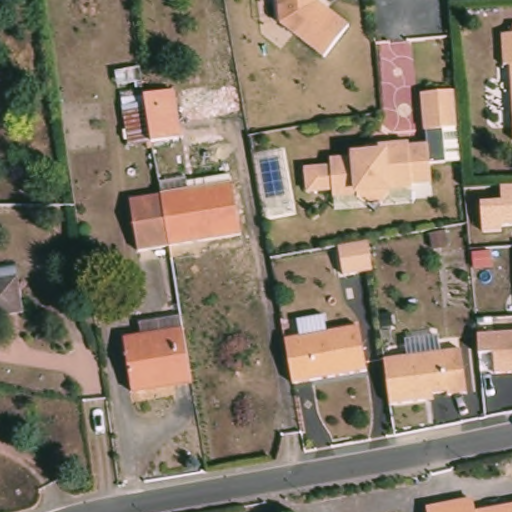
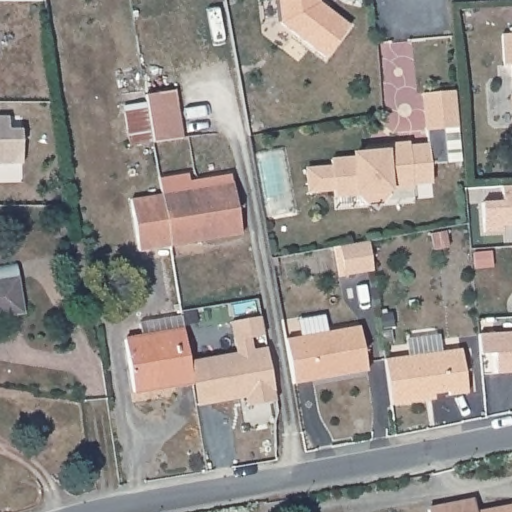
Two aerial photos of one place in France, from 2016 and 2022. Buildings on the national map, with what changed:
unchanged [(354,19),(332,53),(285,21),(283,0),(325,0),(354,19)]
unchanged [(507,33),(512,33),(512,64),(509,64),(507,33)]
unchanged [(335,183),(310,185),(308,162),(333,160),(333,154),(357,152),(356,149),(368,148),(368,141),(386,139),(411,137),(411,141),(429,139),(425,88),(458,85),(460,122),(462,137),(463,155),(448,157),(432,158),(433,177),(414,178),(414,182),(390,183),(391,189),(376,206),(370,200),(336,203),(335,190),(335,183)]
unchanged [(149,144),(126,147),(118,100),(141,97),(170,93),(173,107),(178,139),(149,144)]
new [(9,118),(9,131),(22,130),(23,165),(0,166),(0,118),(9,118)]
unchanged [(157,196),(155,183),(182,179),(184,191),(227,185),(235,234),(165,246),(157,196)]
unchanged [(502,233),(483,234),(481,202),(501,200),(500,187),(512,187),(512,226),(502,227),(502,233)]
unchanged [(132,250),(124,201),(157,196),(165,246),(132,250)]
unchanged [(372,270),(343,274),(339,244),(368,240),(372,270)]
unchanged [(10,280),(14,312),(0,314),(0,282),(10,280)]
new [(196,407),(188,360),(235,352),(229,321),(260,315),(264,337),(252,339),(253,349),(266,347),(275,401),(245,406),(244,398),(196,407)]
unchanged [(128,396),(121,346),(135,343),(133,329),(177,322),(177,325),(187,388),(128,396)]
unchanged [(332,330),(363,324),(371,368),(298,381),(290,337),(332,330)]
unchanged [(479,354),(477,335),(512,333),(512,373),(496,374),(493,354),(479,354)]
unchanged [(465,344),(470,388),(451,390),(451,386),(428,389),(428,395),(393,399),(388,354),(465,344)]
unchanged [(468,501),(470,512),(422,512),(422,510),(468,501)]
unchanged [(512,507),(512,512),(505,512),(504,508),(512,507)]

